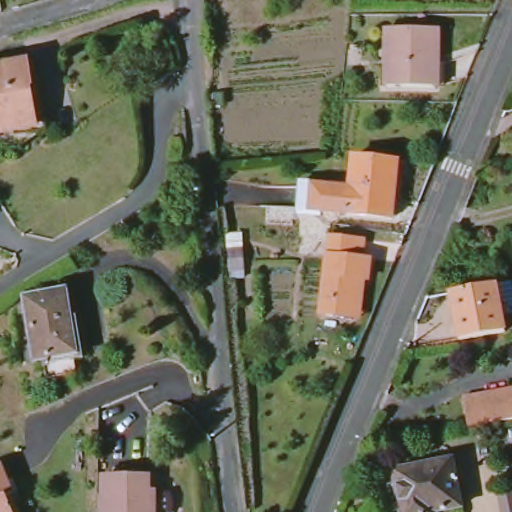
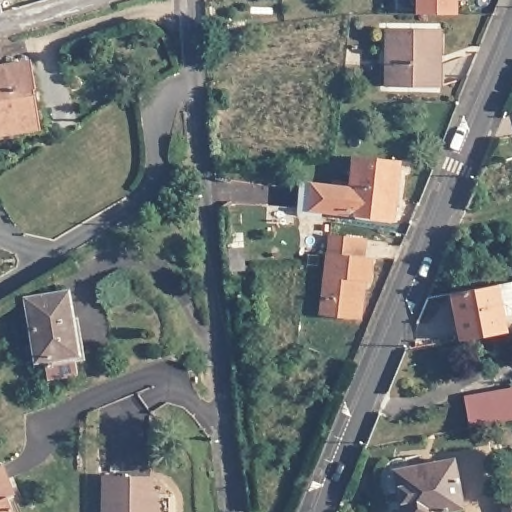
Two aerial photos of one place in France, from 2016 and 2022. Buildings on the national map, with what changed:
unchanged [(440,29),(440,56),(435,56),(435,87),(386,87),(387,29),(440,29)]
unchanged [(35,127),(0,133),(0,66),(29,61),(32,85),(39,126),(35,127)]
unchanged [(292,206),(294,185),(295,180),(308,181),(328,182),(328,179),(346,180),(349,155),(393,161),(388,217),(327,210),(306,208),(292,206)]
unchanged [(288,206),(287,223),(261,222),(262,205),(288,206)]
unchanged [(349,317),(315,313),(324,235),(360,239),(358,257),(367,258),(364,278),(360,278),(356,318),(349,317)]
unchanged [(506,326),(460,335),(450,289),(496,280),(506,326)]
unchanged [(61,285),(72,347),(68,348),(71,366),(42,371),(38,352),(30,354),(20,292),(61,285)]
unchanged [(512,387),(512,418),(465,426),(459,396),(512,387)]
unchanged [(455,505),(423,511),(423,512),(398,512),(392,480),(407,477),(405,466),(447,458),(455,505)]
unchanged [(12,493),(5,495),(12,512),(0,512),(0,466),(2,465),(12,493)]
unchanged [(138,472),(138,487),(150,487),(150,507),(150,512),(97,512),(98,471),(138,472)]

